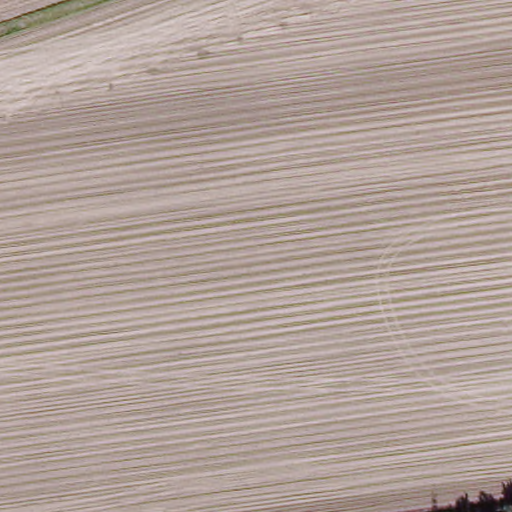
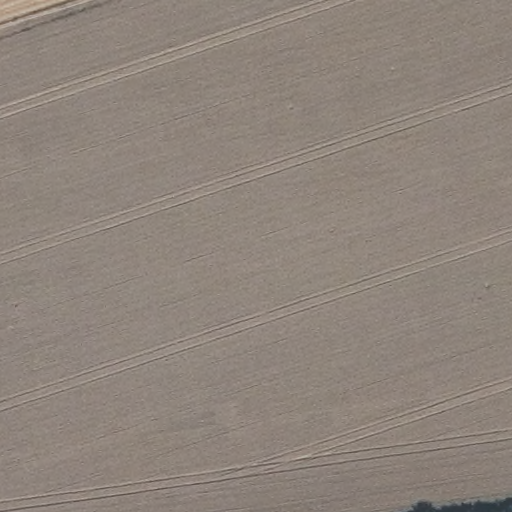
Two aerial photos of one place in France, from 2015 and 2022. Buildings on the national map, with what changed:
[]

